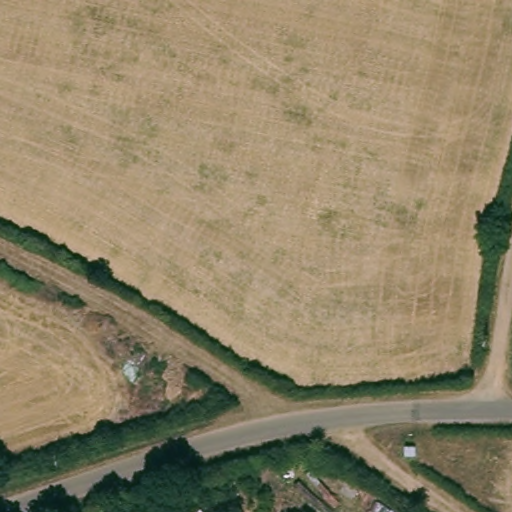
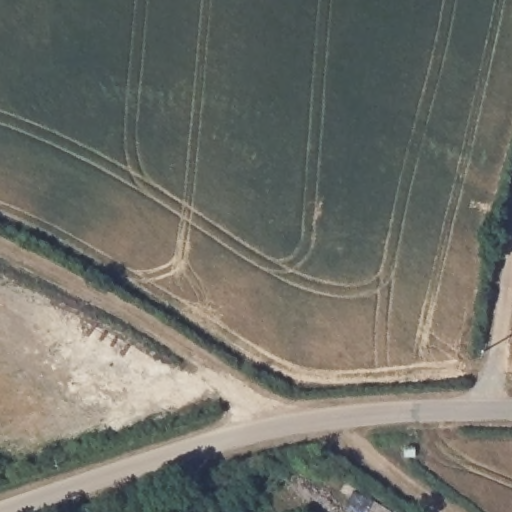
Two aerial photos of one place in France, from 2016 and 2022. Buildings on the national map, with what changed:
unchanged [(174,505),(178,512),(160,512),(174,505)]

